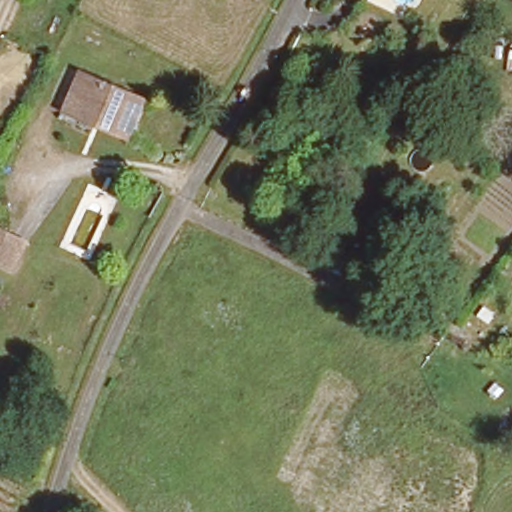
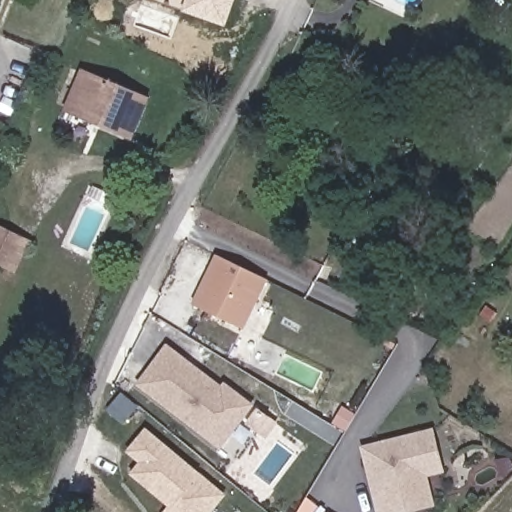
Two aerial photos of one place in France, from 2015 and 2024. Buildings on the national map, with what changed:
new [(182,9),(185,0),(230,0),(221,24),(182,9)]
unchanged [(483,40),(492,46),(479,70),(468,64),(483,40)]
unchanged [(50,67),(37,96),(23,89),(36,60),(50,67)]
unchanged [(70,104),(83,74),(147,101),(131,138),(102,125),(67,111),(70,104)]
demolished [(38,208),(15,197),(29,168),(52,180),(38,208)]
unchanged [(16,272),(0,266),(0,227),(29,242),(16,272)]
new [(266,282),(241,331),(192,306),(217,257),(266,282)]
new [(168,349),(223,391),(218,397),(183,370),(166,392),(146,377),(168,349)]
new [(146,377),(166,392),(183,370),(218,397),(225,387),(253,408),(221,450),(138,388),(146,377)]
new [(435,506),(411,512),(375,512),(359,447),(433,427),(445,473),(428,477),(435,506)]
new [(224,496),(211,512),(176,512),(132,475),(141,463),(128,452),(145,431),(224,496)]
new [(176,512),(167,512),(171,507),(176,512)]

